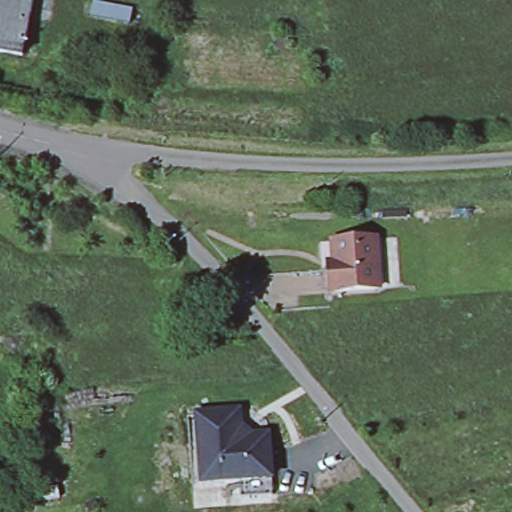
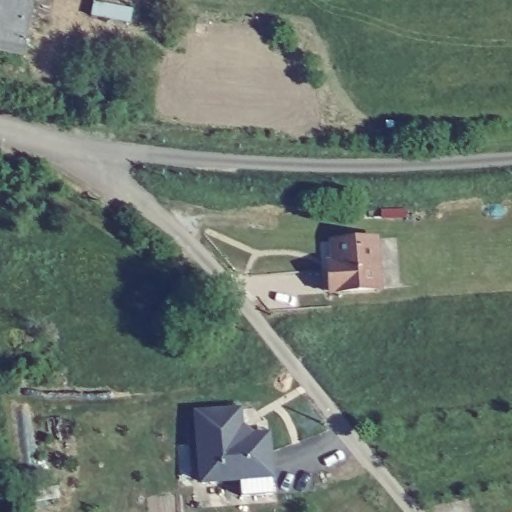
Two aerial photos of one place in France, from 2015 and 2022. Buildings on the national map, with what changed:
unchanged [(23,55),(0,50),(0,0),(12,0),(32,4),(23,55)]
unchanged [(384,235),(387,285),(367,286),(364,236),(384,235)]
unchanged [(367,286),(315,290),(314,268),(312,240),(320,240),(364,236),(367,286)]
unchanged [(235,495),(234,476),(197,480),(192,411),(234,408),(247,406),(261,420),(262,432),(265,474),(267,492),(235,495)]

